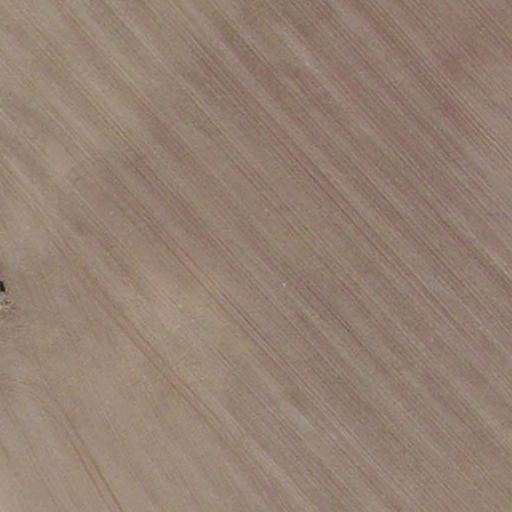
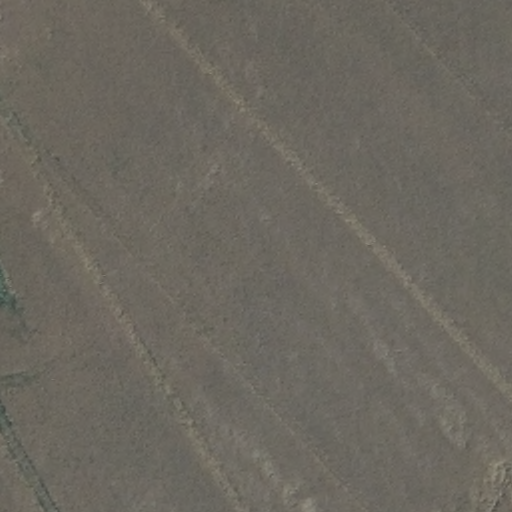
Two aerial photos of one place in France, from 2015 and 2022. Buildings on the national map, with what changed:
[]

